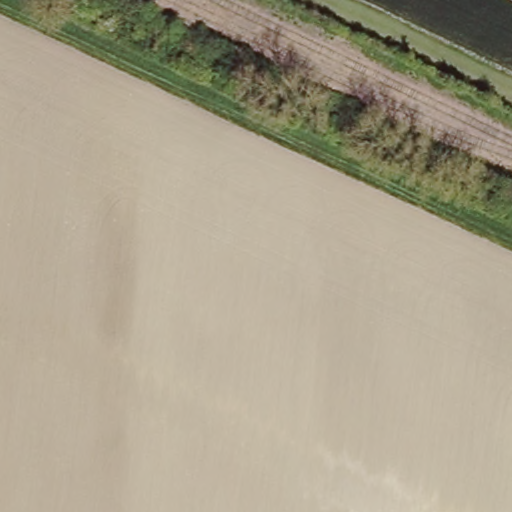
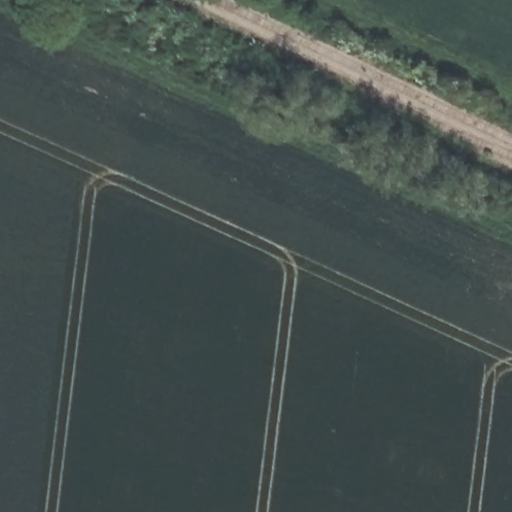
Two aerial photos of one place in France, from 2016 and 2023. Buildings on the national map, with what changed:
[]

